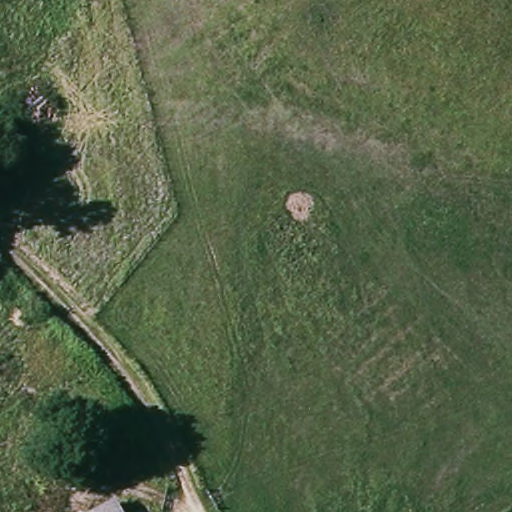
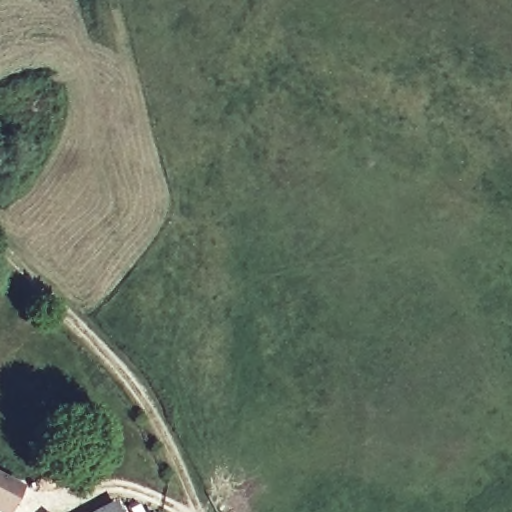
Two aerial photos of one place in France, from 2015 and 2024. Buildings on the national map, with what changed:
new [(9,512),(0,512),(0,476),(22,487),(9,512)]
unchanged [(121,512),(91,512),(112,499),(121,512)]

